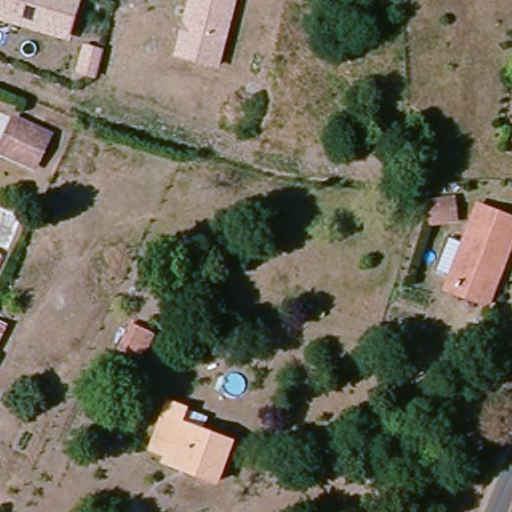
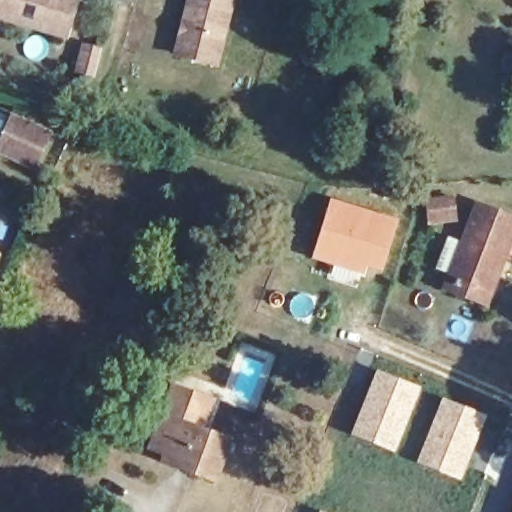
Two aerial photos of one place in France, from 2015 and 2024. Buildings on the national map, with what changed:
unchanged [(0,0),(79,0),(68,40),(0,19),(0,0)]
unchanged [(221,68),(175,55),(188,0),(238,0),(221,68)]
unchanged [(99,80),(76,73),(84,43),(104,49),(99,80)]
unchanged [(31,166),(0,153),(0,139),(9,120),(44,135),(31,166)]
unchanged [(421,228),(418,197),(452,194),(454,223),(421,228)]
new [(330,197),(399,219),(382,271),(367,267),(364,277),(362,276),(357,287),(327,277),(332,265),(310,258),(330,197)]
unchanged [(443,283),(446,275),(473,200),(512,214),(512,244),(496,291),(488,289),(485,296),(443,283)]
unchanged [(0,333),(0,319),(6,322),(0,333)]
unchanged [(139,366),(107,350),(125,319),(156,334),(139,366)]
new [(376,368),(422,386),(394,453),(348,435),(376,368)]
new [(442,395),(487,414),(461,481),(415,462),(442,395)]
unchanged [(150,448),(169,403),(185,409),(204,417),(197,432),(229,445),(214,484),(191,474),(162,463),(166,455),(150,448)]
new [(326,512),(318,512),(319,509),(326,512)]

